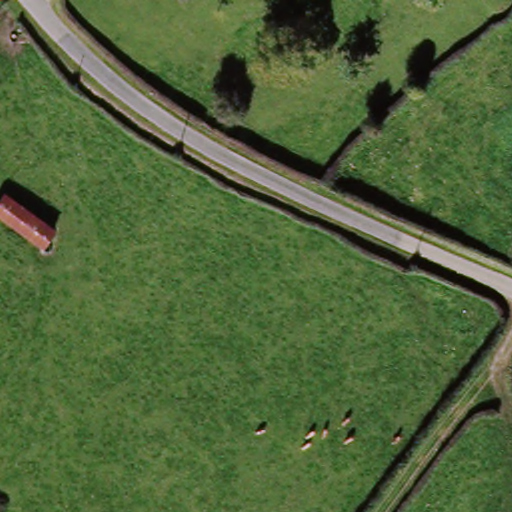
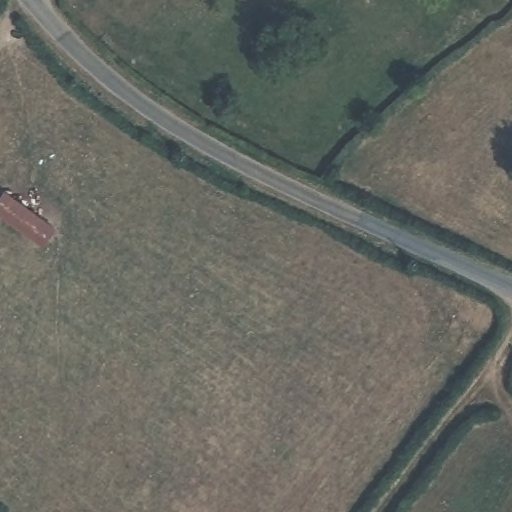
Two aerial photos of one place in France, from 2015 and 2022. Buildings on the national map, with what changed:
unchanged [(0,221),(0,197),(47,232),(37,247),(0,221)]

